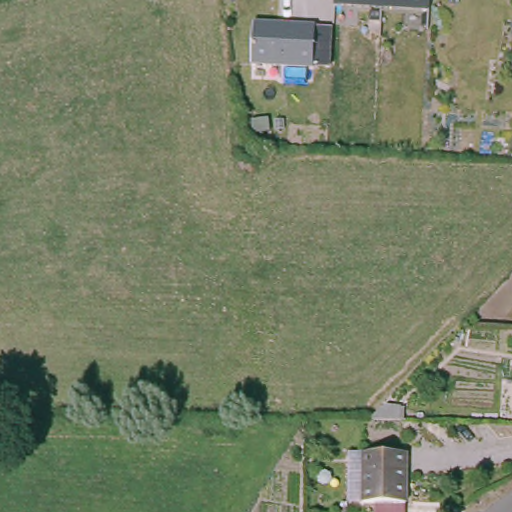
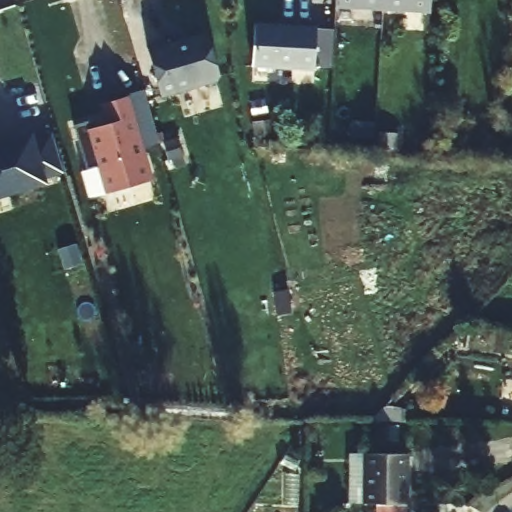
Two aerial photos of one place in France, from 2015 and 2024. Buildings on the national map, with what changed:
unchanged [(431,14),(334,9),(335,0),(431,0),(431,14)]
unchanged [(316,25),(315,71),(253,68),(255,22),(316,25)]
new [(163,40),(165,45),(207,33),(219,76),(217,80),(161,96),(146,45),(163,40)]
new [(144,90),(160,145),(143,150),(126,95),(144,90)]
new [(93,120),(95,127),(108,124),(102,104),(127,96),(151,181),(106,194),(98,167),(86,170),(73,125),(93,120)]
new [(29,138),(30,142),(53,135),(63,170),(40,177),(42,181),(0,194),(0,147),(9,144),(29,138)]
unchanged [(408,455),(408,505),(365,505),(365,455),(408,455)]

